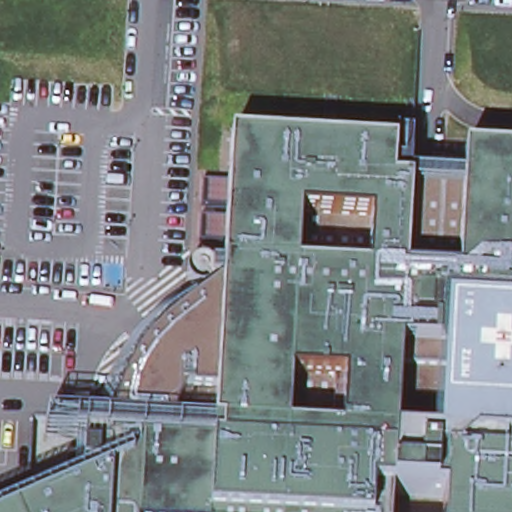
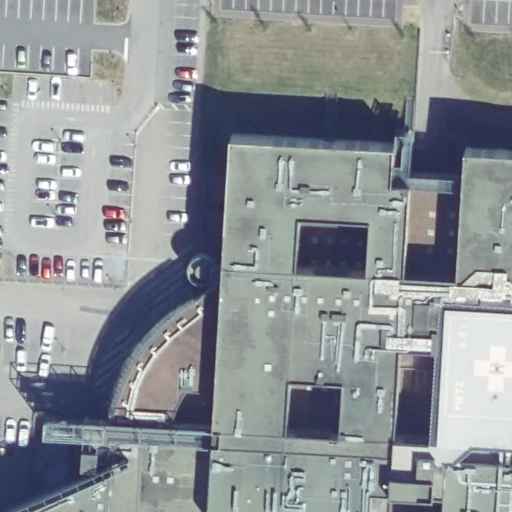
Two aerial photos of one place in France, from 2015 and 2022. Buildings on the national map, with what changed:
unchanged [(87,416),(113,418),(116,397),(120,382),(128,363),(140,346),(155,327),(172,312),(190,300),(212,286),(223,281),(233,132),(395,142),(395,174),(464,180),(465,148),(512,151),(512,512),(443,512),(445,490),(437,489),(390,487),(389,512),(0,512),(0,509),(83,472),(87,416)]

